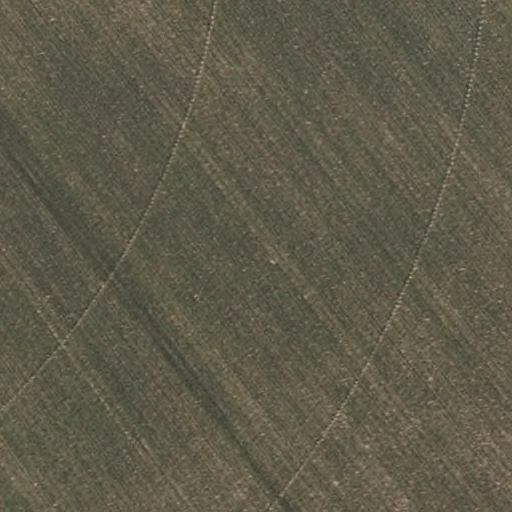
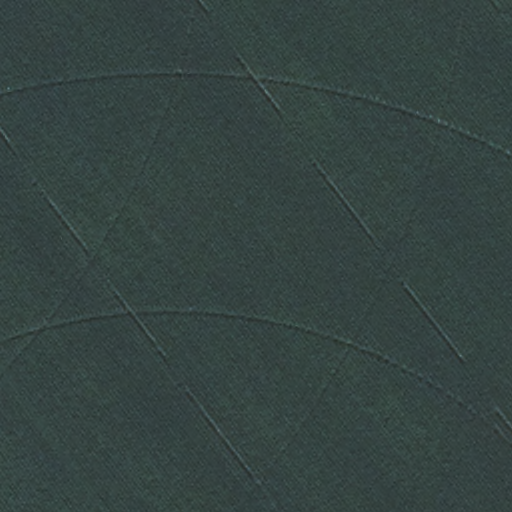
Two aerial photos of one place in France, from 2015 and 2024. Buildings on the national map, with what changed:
[]

